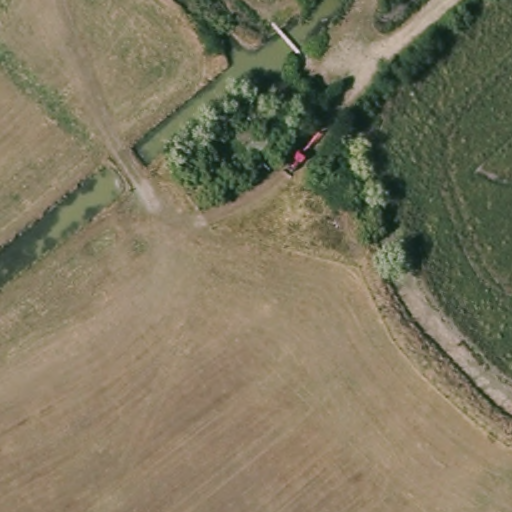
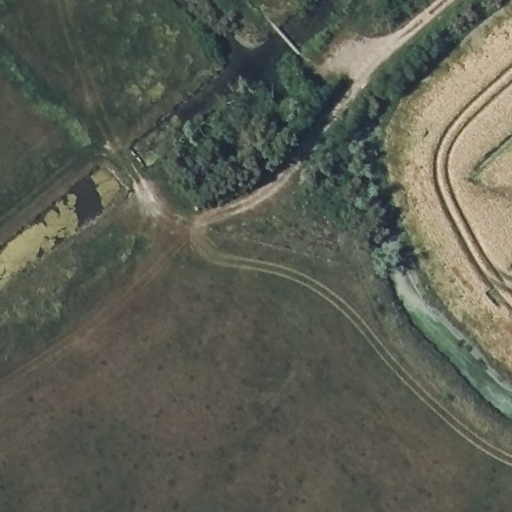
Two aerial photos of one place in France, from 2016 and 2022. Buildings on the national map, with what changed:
unchanged [(271,145),(255,160),(231,134),(249,117),(271,145)]

